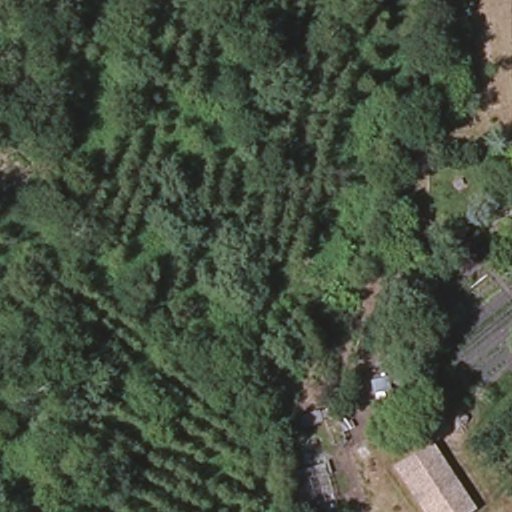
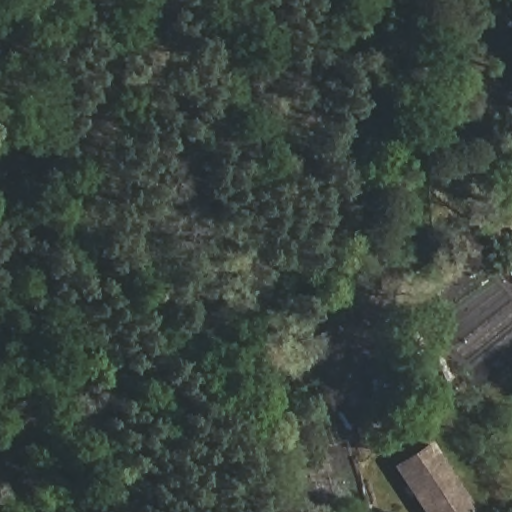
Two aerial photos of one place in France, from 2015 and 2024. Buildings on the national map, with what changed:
unchanged [(425,512),(395,467),(430,444),(473,508),(467,512),(425,512)]

